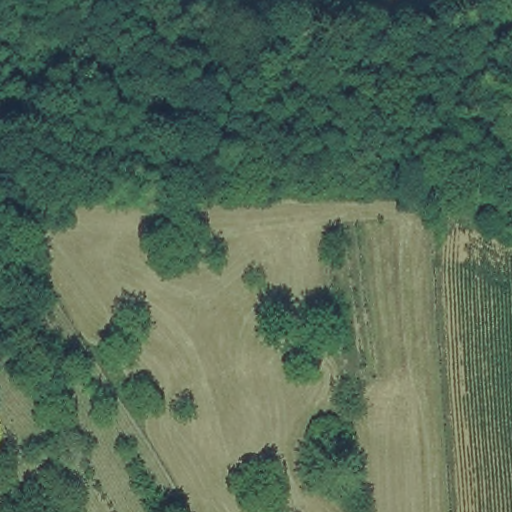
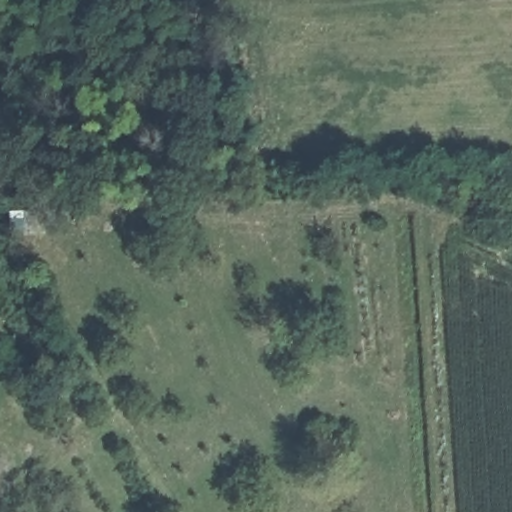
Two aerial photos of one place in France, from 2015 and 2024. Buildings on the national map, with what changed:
unchanged [(342,435),(344,464),(327,468),(326,436),(342,435)]

